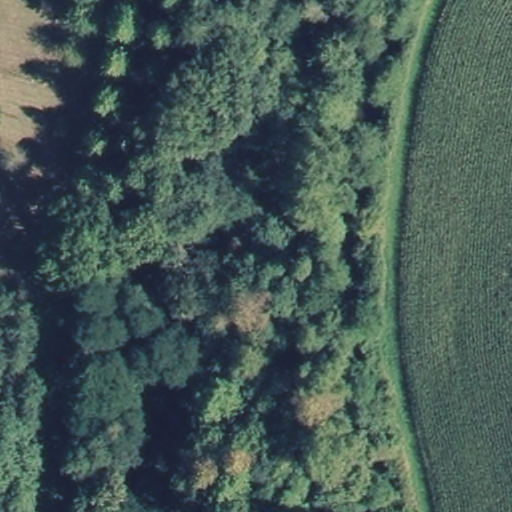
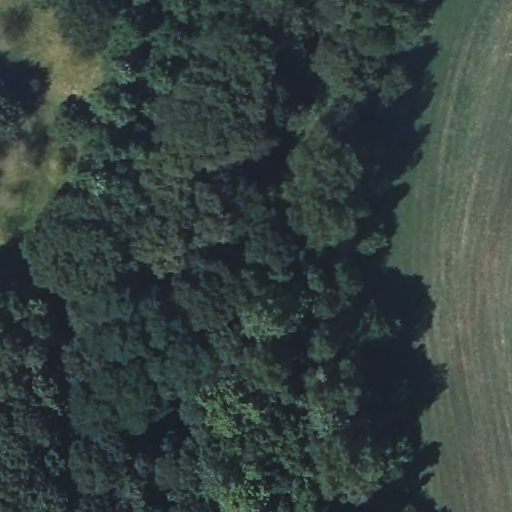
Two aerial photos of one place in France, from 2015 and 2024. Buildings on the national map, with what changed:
[]

